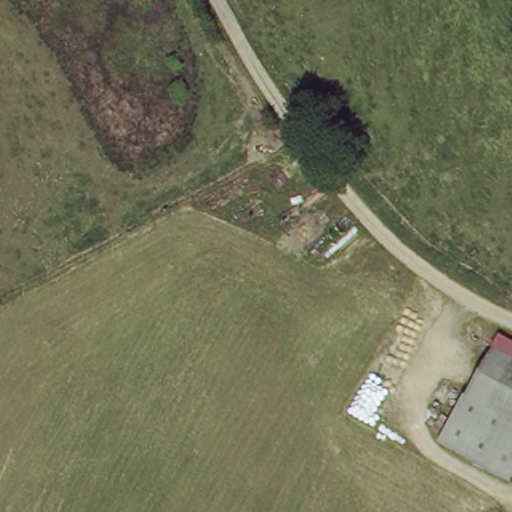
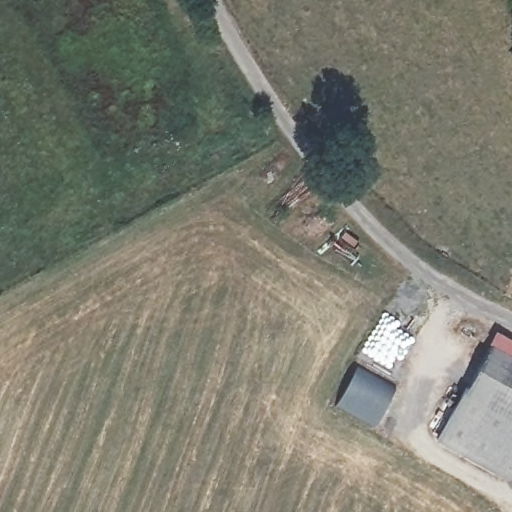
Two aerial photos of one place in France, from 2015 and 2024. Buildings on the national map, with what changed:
unchanged [(433,444),(449,420),(444,416),(455,392),(467,395),(492,349),(512,359),(512,476),(508,483),(433,444)]
new [(357,365),(398,388),(376,428),(335,406),(357,365)]

